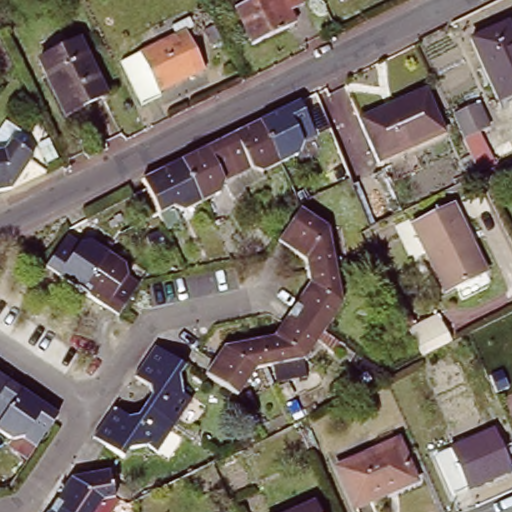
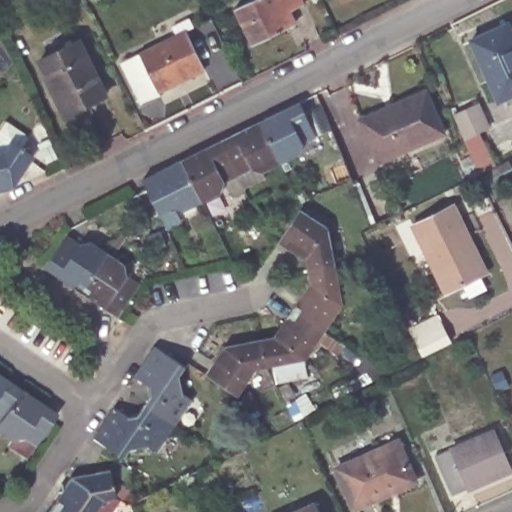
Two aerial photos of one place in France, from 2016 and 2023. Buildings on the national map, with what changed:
unchanged [(262,0),(299,0),(303,10),(290,17),(295,30),(253,50),(235,14),(262,0)]
unchanged [(342,7),(338,0),(355,0),(342,7)]
unchanged [(122,63),(138,55),(177,36),(172,27),(190,18),(194,27),(187,31),(205,69),(160,92),(162,96),(143,105),(122,63)]
unchanged [(493,106),(466,45),(502,28),(512,49),(512,97),(493,106)]
unchanged [(111,95),(72,115),(45,60),(84,41),(111,95)]
unchanged [(367,124),(400,109),(397,105),(430,90),(450,133),(384,162),(367,124)]
unchanged [(307,143),(304,154),(285,163),(265,121),(285,112),(304,102),(321,136),(307,143)]
unchanged [(477,103),(488,128),(463,139),(452,114),(477,103)]
unchanged [(270,177),(248,187),(228,146),(225,141),(245,131),(265,121),(285,163),(267,172),(270,177)]
unchanged [(512,144),(512,148),(500,154),(497,147),(510,140),(512,144)]
unchanged [(230,182),(226,192),(207,202),(187,160),(207,150),(225,141),(228,146),(248,187),(250,191),(237,197),(230,182)]
unchanged [(10,146),(33,161),(12,194),(0,196),(0,156),(4,156),(10,146)]
unchanged [(479,174),(472,159),(486,151),(494,167),(479,174)]
unchanged [(460,161),(470,156),(478,174),(469,179),(460,161)]
unchanged [(152,189),(150,185),(147,180),(160,173),(187,160),(207,202),(189,211),(178,207),(164,214),(152,220),(140,196),(152,189)]
unchanged [(487,188),(480,174),(507,161),(512,170),(512,176),(497,183),(502,194),(492,199),(487,188)]
unchanged [(382,174),(388,171),(407,212),(401,215),(382,174)]
unchanged [(311,189),(315,198),(311,200),(305,203),(301,194),(311,189)]
unchanged [(453,205),(460,220),(486,272),(481,275),(445,292),(412,225),(453,205)]
unchanged [(340,266),(313,271),(311,260),(302,253),(295,250),(283,241),(287,236),(305,209),(332,228),(340,266)]
unchanged [(79,249),(90,247),(107,258),(82,297),(63,284),(45,272),(48,267),(67,240),(79,249)]
unchanged [(125,270),(127,281),(140,289),(122,316),(118,321),(100,309),(82,297),(107,258),(125,270)]
unchanged [(329,331),(302,313),(297,310),(306,297),(309,292),(315,283),(313,271),(340,266),(347,304),(329,331)]
unchanged [(450,342),(422,356),(408,329),(395,304),(402,300),(415,325),(437,315),(450,342)]
unchanged [(140,320),(133,316),(137,310),(143,314),(140,320)]
unchanged [(323,340),(310,359),(308,359),(312,377),(281,383),(277,365),(272,366),(267,339),(278,337),(285,328),(288,323),(297,310),(302,313),(329,331),(350,346),(342,355),(323,340)]
unchanged [(215,378),(210,374),(219,362),(220,361),(222,356),(229,347),(267,339),(272,366),(261,368),(242,396),(215,378)]
unchanged [(155,346),(185,367),(180,376),(183,393),(192,400),(175,426),(145,405),(152,395),(150,386),(135,376),(155,346)]
unchanged [(26,389),(23,394),(5,421),(0,418),(0,371),(8,377),(26,389)]
unchanged [(342,388),(360,380),(365,385),(345,395),(342,388)]
unchanged [(17,439),(0,428),(5,421),(23,394),(26,389),(45,402),(63,414),(60,419),(57,423),(42,446),(33,458),(13,445),(17,439)]
unchanged [(287,405),(295,401),(302,417),(298,418),(294,421),(287,405)]
unchanged [(128,417),(138,415),(145,405),(175,426),(157,452),(148,445),(130,449),(124,458),(120,455),(105,445),(94,438),(114,408),(128,417)]
unchanged [(512,470),(453,495),(436,456),(495,430),(512,470)]
unchanged [(355,507),(337,468),(397,442),(414,481),(355,507)]
unchanged [(110,476),(115,502),(120,505),(115,512),(56,512),(53,510),(65,493),(71,483),(84,481),(110,476)]
unchanged [(321,512),(309,512),(320,508),(321,512)]
unchanged [(56,512),(52,512),(53,510),(56,512)]

